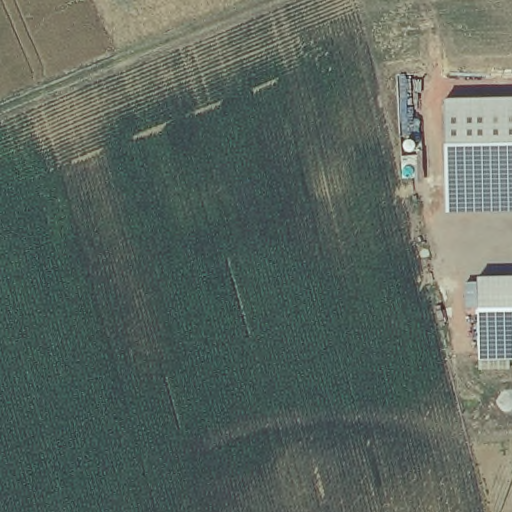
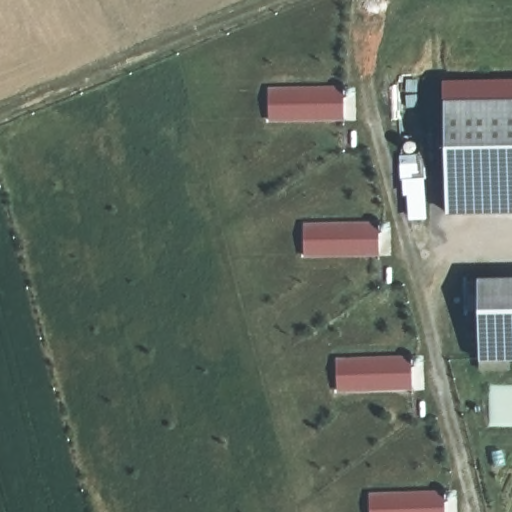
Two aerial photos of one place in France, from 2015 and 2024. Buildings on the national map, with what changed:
new [(512,99),(450,100),(450,80),(512,79),(512,99)]
new [(268,121),(268,86),(342,86),(344,121),(268,121)]
new [(353,95),(351,96),(350,96),(349,96),(346,95),(345,93),(345,91),(346,89),(348,88),(350,87),(351,88),(353,89),(354,90),(355,91),(353,95)]
unchanged [(450,100),(512,99),(512,211),(451,212),(450,100)]
new [(407,219),(402,154),(424,152),(429,218),(407,219)]
new [(304,256),(303,222),(377,222),(378,256),(304,256)]
new [(389,225),(389,227),(389,230),(388,231),(386,232),(384,231),(383,231),(381,230),(381,228),(381,225),(384,224),(387,222),(389,225)]
unchanged [(482,277),(512,277),(512,359),(482,360),(482,277)]
new [(336,392),(334,357),(409,356),(411,390),(336,392)]
new [(419,366),(417,366),(414,365),(414,363),(413,361),(414,360),(416,357),(418,356),(420,357),(422,360),(423,361),(423,363),(422,365),(419,366)]
new [(444,512),(369,512),(369,491),(444,490),(444,512)]
new [(449,501),(448,500),(447,498),(447,496),(447,495),(449,492),(450,491),(452,491),(454,492),(455,495),(455,497),(454,499),(454,500),(449,501)]

